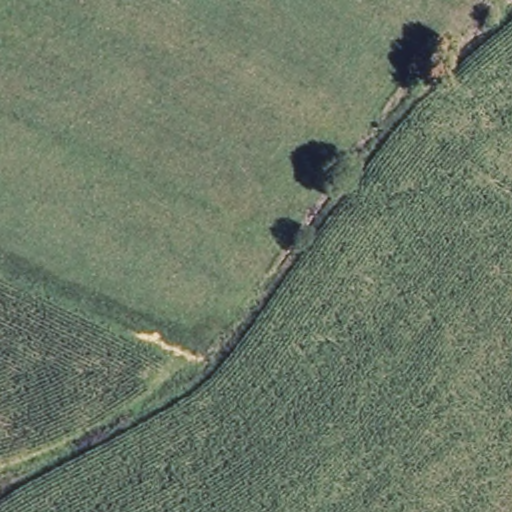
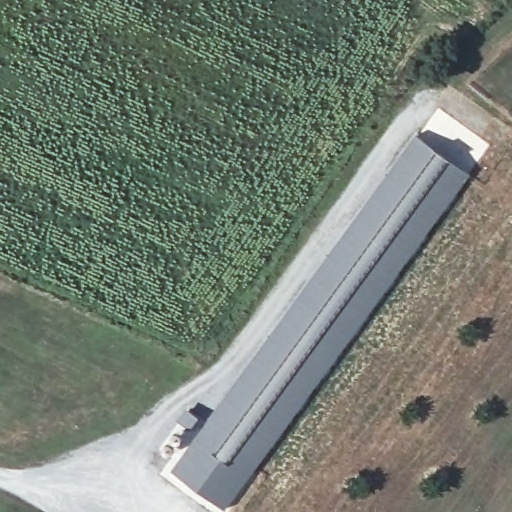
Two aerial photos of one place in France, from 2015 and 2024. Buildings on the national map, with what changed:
new [(169,470),(420,139),(470,176),(218,508),(202,496),(189,485),(169,470)]
new [(191,433),(181,425),(190,413),(201,420),(191,433)]

